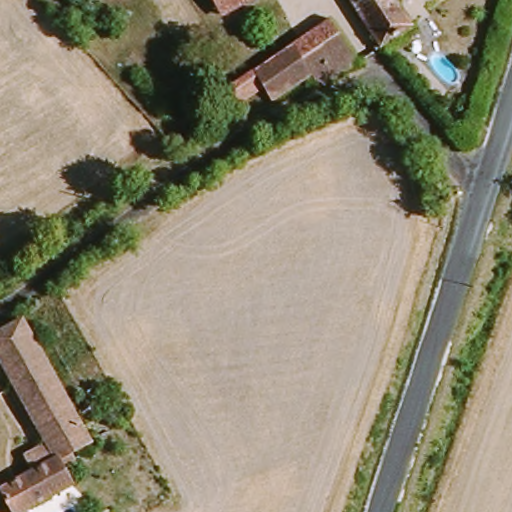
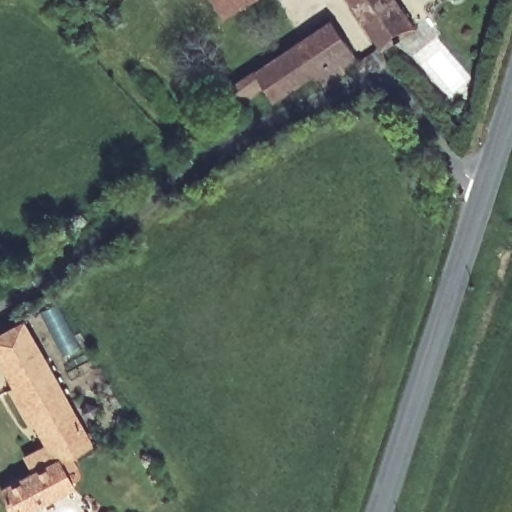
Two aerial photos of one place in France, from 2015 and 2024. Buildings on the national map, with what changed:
unchanged [(249,0),(222,19),(210,0),(249,0)]
unchanged [(399,0),(420,27),(379,57),(339,0),(399,0)]
unchanged [(327,25),(356,66),(319,90),(312,80),(271,105),(263,95),(238,108),(227,93),(255,74),(327,25)]
unchanged [(0,369),(0,336),(22,322),(89,442),(55,462),(0,369)]
unchanged [(0,499),(0,496),(55,462),(67,485),(22,512),(8,512),(0,499)]

